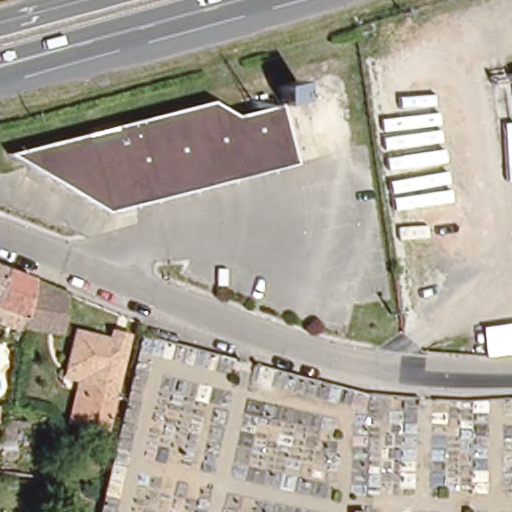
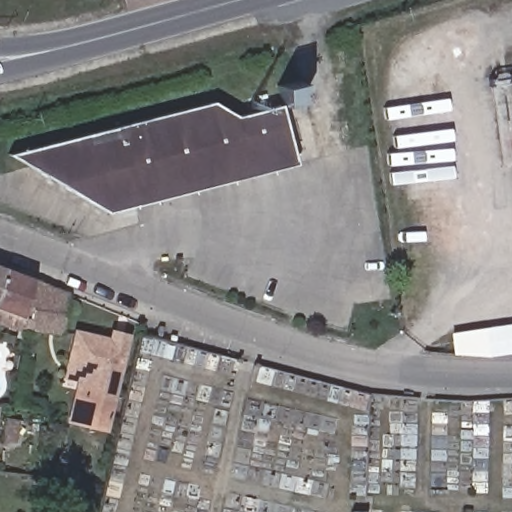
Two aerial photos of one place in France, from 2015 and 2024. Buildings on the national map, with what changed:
unchanged [(280,106),(275,84),(295,79),(301,100),(280,106)]
unchanged [(32,170),(6,156),(35,148),(211,101),(235,115),(278,104),(293,164),(107,213),(32,170)]
unchanged [(35,282),(26,332),(13,328),(0,323),(0,268),(35,282)]
unchanged [(63,338),(26,332),(35,282),(70,296),(63,338)]
unchanged [(512,326),(512,353),(488,356),(485,329),(512,326)]
unchanged [(65,378),(67,371),(77,335),(110,344),(113,336),(128,341),(126,349),(102,433),(75,426),(68,424),(80,383),(65,378)]

